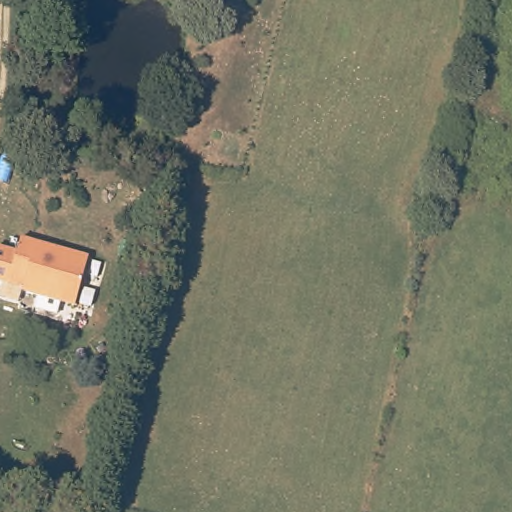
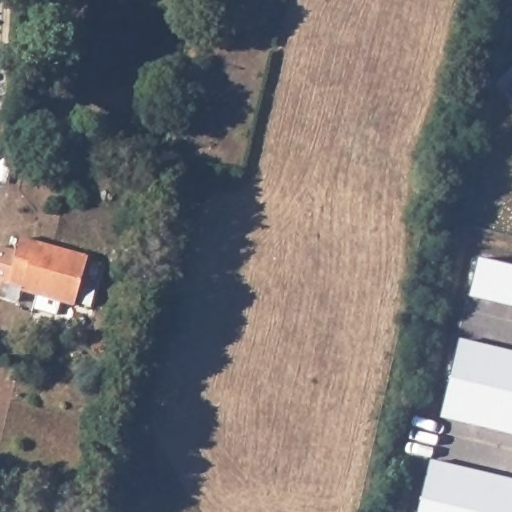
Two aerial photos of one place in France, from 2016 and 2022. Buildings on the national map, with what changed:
unchanged [(169,172),(173,160),(185,162),(182,174),(169,172)]
unchanged [(23,242),(88,254),(78,313),(27,303),(29,290),(13,287),(23,242)]
new [(480,257),(512,265),(512,305),(471,295),(480,257)]
new [(459,340),(512,353),(512,434),(440,416),(459,340)]
new [(431,462),(512,481),(512,512),(419,512),(431,462)]

